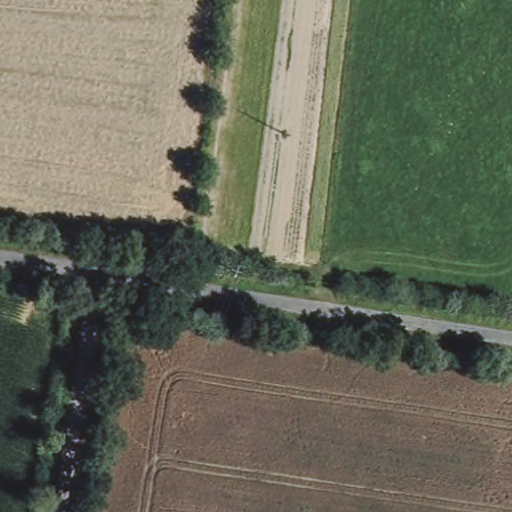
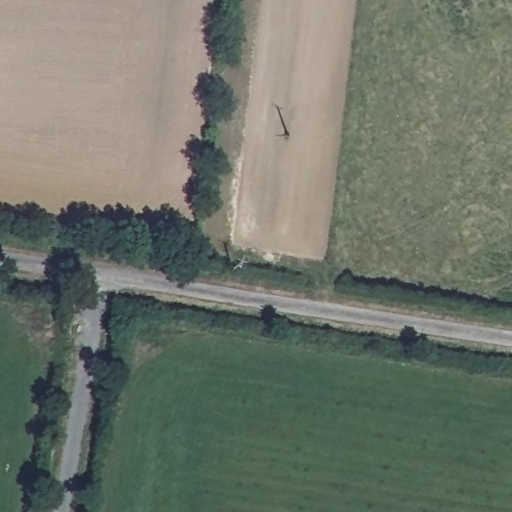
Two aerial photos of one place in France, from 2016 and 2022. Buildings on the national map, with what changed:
unchanged [(325,277),(326,259),(342,262),(339,279),(325,277)]

